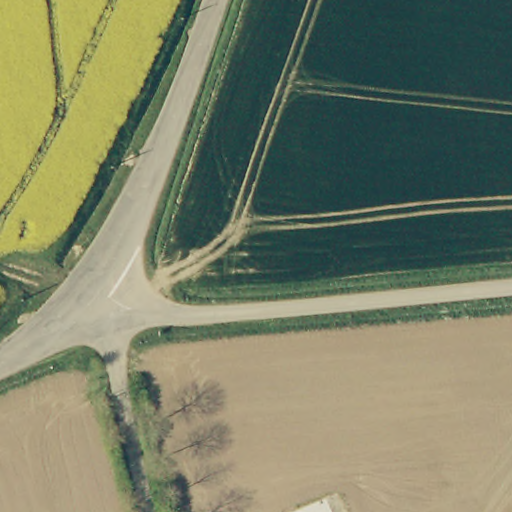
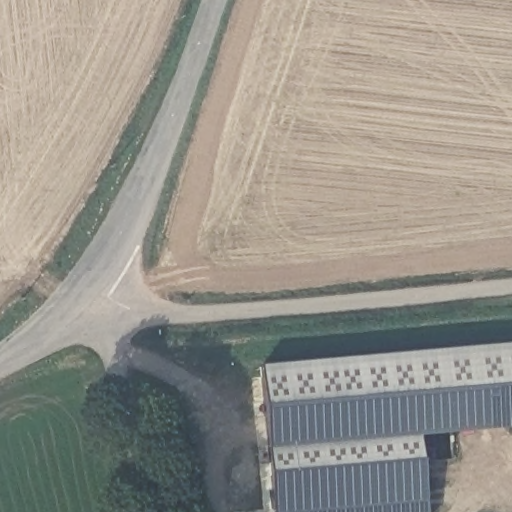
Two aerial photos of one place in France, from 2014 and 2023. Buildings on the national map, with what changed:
new [(512,343),(512,427),(421,434),(427,503),(302,511),(302,512),(273,512),(261,364),(512,343)]

